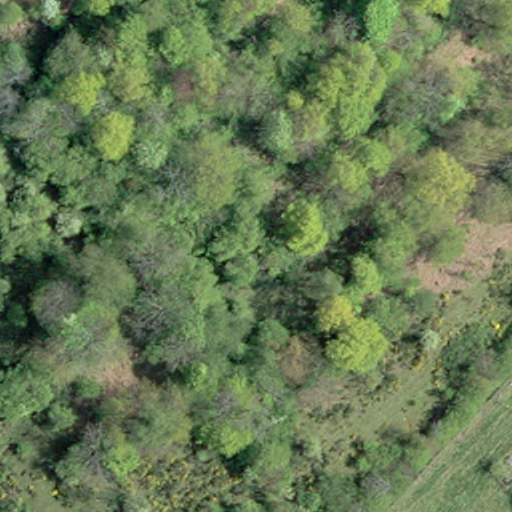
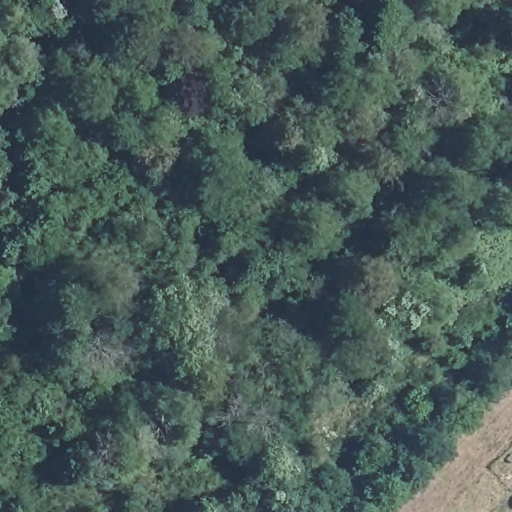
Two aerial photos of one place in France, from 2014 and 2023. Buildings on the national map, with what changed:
[]

